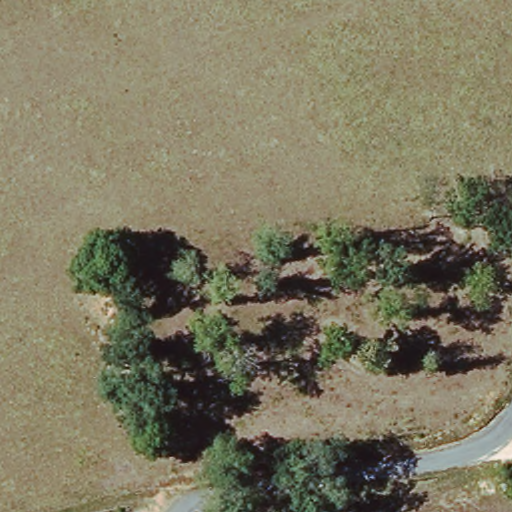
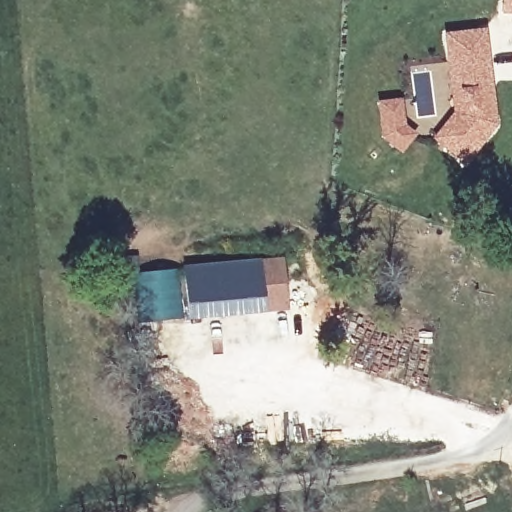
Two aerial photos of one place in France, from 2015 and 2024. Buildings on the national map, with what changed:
new [(502,14),(502,0),(512,0),(512,14),(502,14)]
new [(444,33),(486,28),(498,124),(465,165),(431,139),(452,112),(444,33)]
new [(284,257),(289,310),(267,311),(263,260),(284,257)]
new [(184,268),(263,260),(267,311),(188,318),(184,268)]
new [(139,323),(136,272),(184,268),(188,318),(139,323)]

